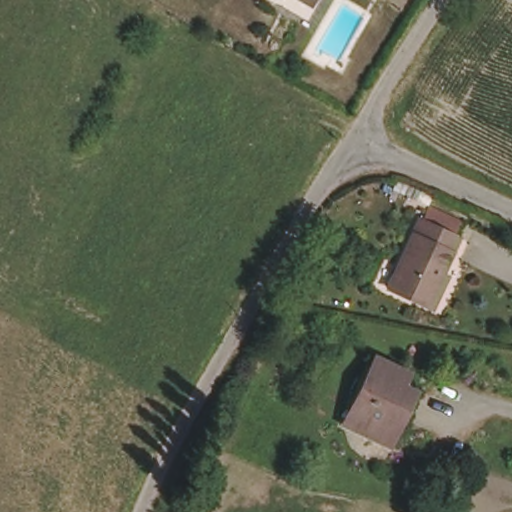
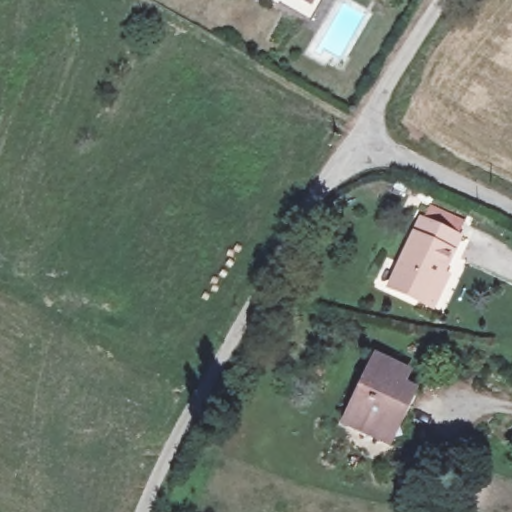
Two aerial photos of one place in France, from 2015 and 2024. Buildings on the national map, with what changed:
unchanged [(268,0),(323,0),(310,22),(294,14),(268,0)]
unchanged [(438,312),(432,309),(391,294),(417,224),(424,210),(459,223),(451,237),(460,240),(445,278),(450,280),(438,312)]
unchanged [(368,437),(340,423),(371,360),(390,368),(395,382),(411,391),(394,427),(385,444),(368,437)]

